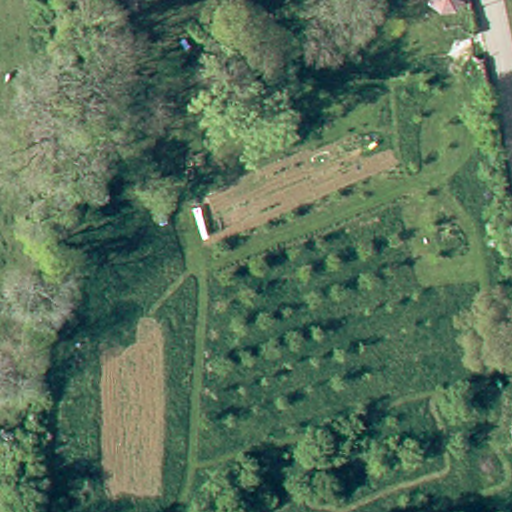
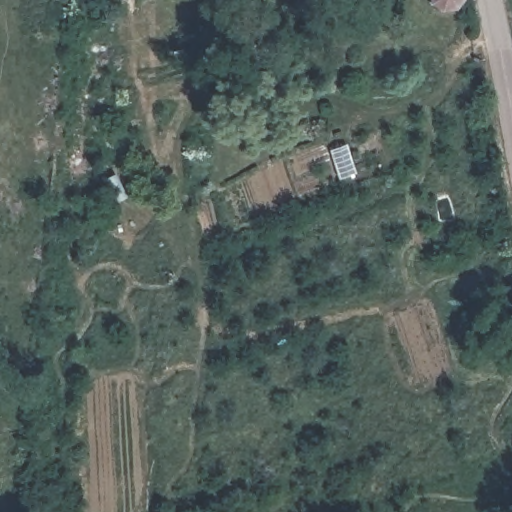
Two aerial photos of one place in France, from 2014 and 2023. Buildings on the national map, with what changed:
unchanged [(424,8),(423,0),(474,0),(475,1),(477,1),(477,4),(475,4),(477,15),(480,16),(479,18),(475,18),(471,23),(472,27),(469,28),(467,25),(461,26),(460,29),(457,28),(457,25),(450,20),(448,24),(445,22),(447,19),(444,6),(424,8)]

